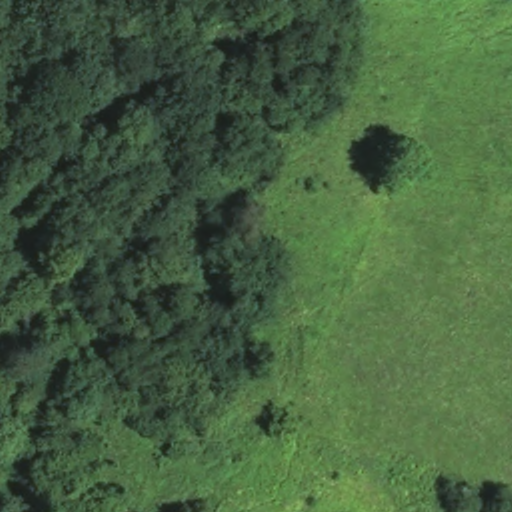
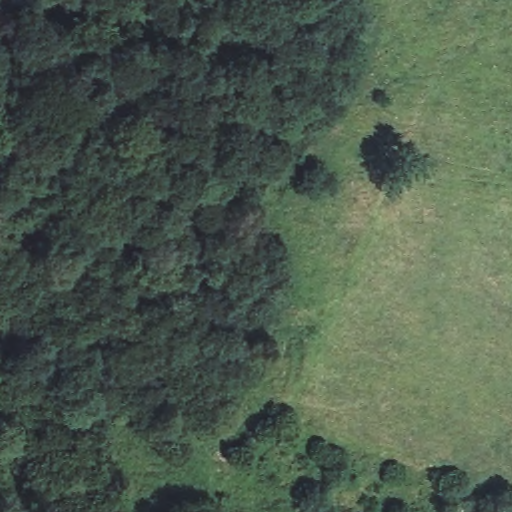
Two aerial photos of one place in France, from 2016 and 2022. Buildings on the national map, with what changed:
[]

